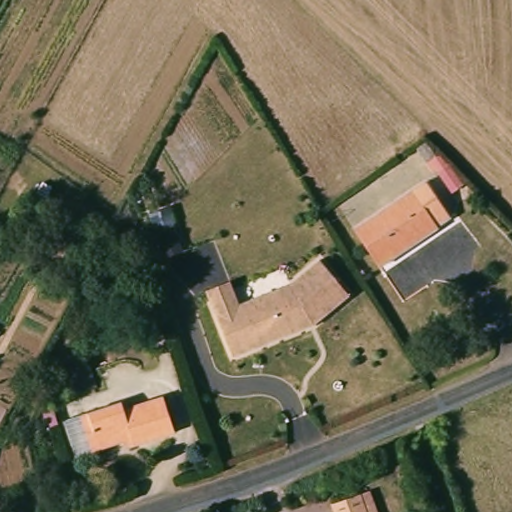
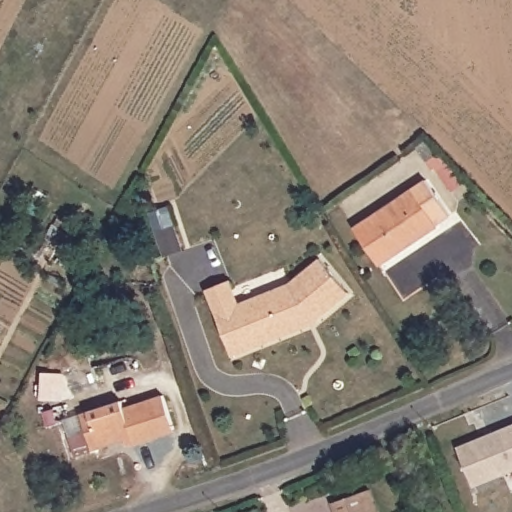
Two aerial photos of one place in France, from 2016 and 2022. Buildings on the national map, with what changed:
unchanged [(436,156),(441,152),(447,160),(463,185),(453,191),(436,167),(432,170),(427,162),(417,147),(426,141),(436,156)]
unchanged [(355,234),(426,186),(451,222),(437,230),(439,232),(380,271),(355,234)]
unchanged [(349,295),(314,323),(233,356),(215,314),(206,291),(229,281),(239,305),(289,284),(319,259),(349,295)]
unchanged [(125,445),(100,453),(94,455),(83,420),(89,417),(122,407),(124,414),(164,401),(175,437),(134,450),(128,452),(125,445)]
new [(457,446),(512,425),(512,473),(474,487),(457,446)]
unchanged [(360,503),(369,500),(373,512),(337,512),(360,503)]

